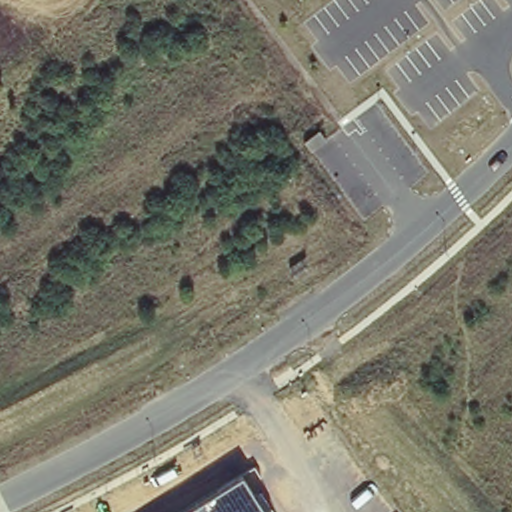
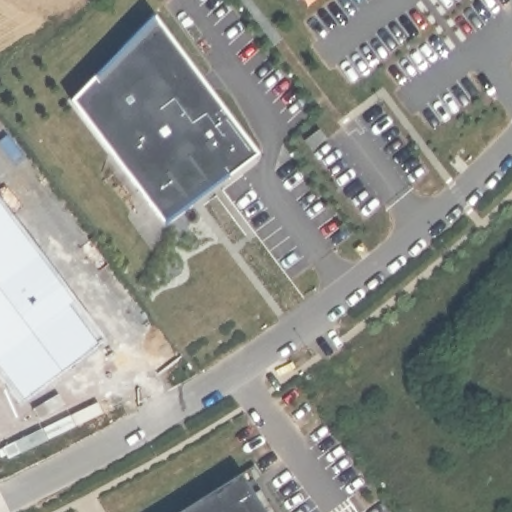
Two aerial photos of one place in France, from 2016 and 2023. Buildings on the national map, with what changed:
new [(258,151),(165,218),(60,85),(152,14),(258,151)]
new [(106,340),(19,403),(0,379),(0,197),(106,340)]
unchanged [(265,512),(182,512),(243,474),(265,512)]

